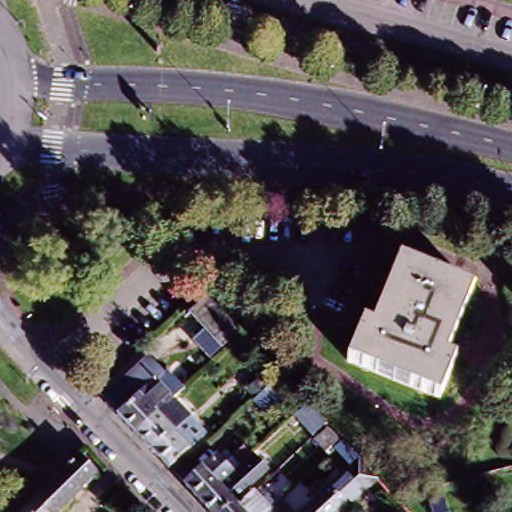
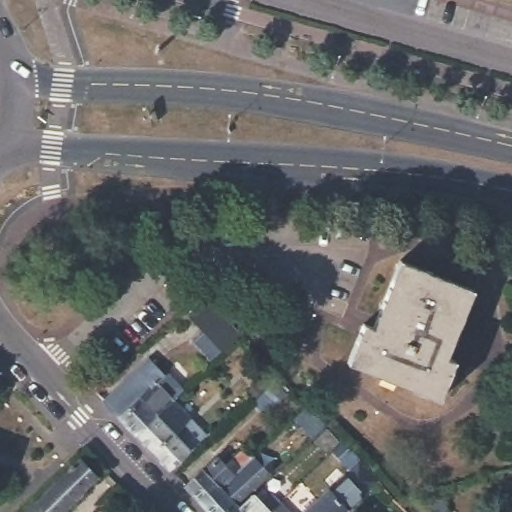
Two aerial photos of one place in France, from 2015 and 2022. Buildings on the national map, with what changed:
unchanged [(361,326),(370,330),(396,262),(471,292),(444,360),(454,364),(436,408),(344,370),(361,326)]
unchanged [(204,306),(237,341),(222,355),(190,320),(204,306)]
unchanged [(145,360),(160,374),(162,371),(181,391),(167,405),(133,436),(101,403),(145,360)]
unchanged [(267,370),(271,374),(265,380),(261,375),(267,370)]
unchanged [(253,406),(275,385),(282,393),(261,413),(253,406)]
unchanged [(167,405),(181,420),(170,432),(170,433),(149,452),(145,448),(133,436),(167,405)]
unchanged [(170,433),(176,439),(191,425),(203,437),(167,470),(149,452),(170,433)]
unchanged [(257,453),(285,426),(291,432),(258,462),(253,456),(257,453)]
unchanged [(326,432),(338,445),(327,455),(315,442),(326,432)]
unchanged [(197,508),(181,491),(196,477),(198,478),(212,465),(227,481),(236,472),(229,465),(238,455),(246,463),(247,461),(247,462),(262,477),(241,496),(227,508),(229,510),(231,512),(201,512),(197,508)]
unchanged [(31,506),(65,473),(74,465),(78,460),(95,478),(59,512),(25,512),(31,506)]
unchanged [(371,487),(345,512),(306,512),(353,467),(371,487)]
unchanged [(248,500),(256,508),(265,500),(273,510),(271,512),(236,512),(248,500)]

